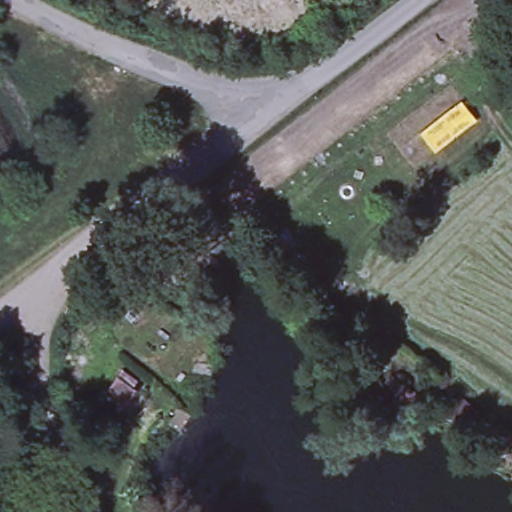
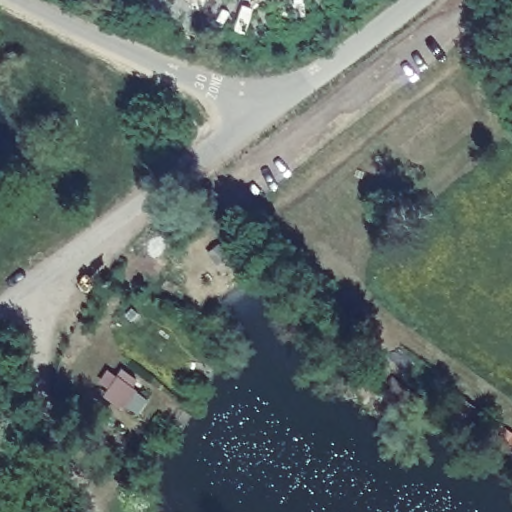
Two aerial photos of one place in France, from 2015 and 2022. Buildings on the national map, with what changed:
unchanged [(141,382),(124,410),(100,396),(120,367),(141,382)]

